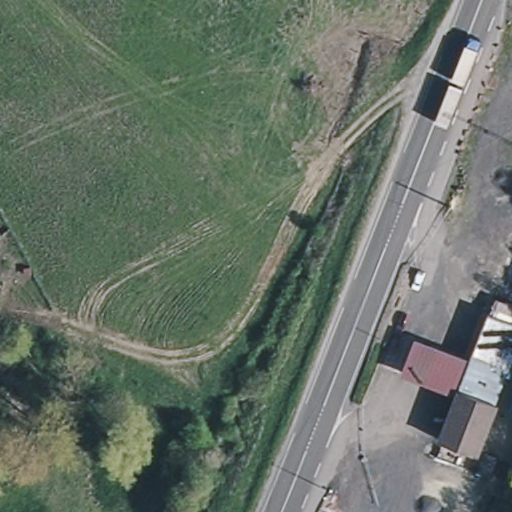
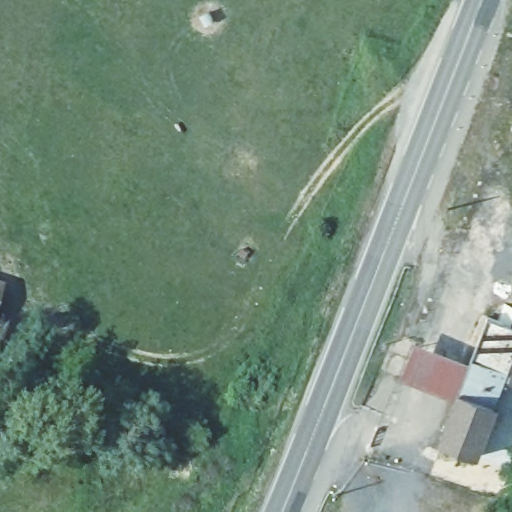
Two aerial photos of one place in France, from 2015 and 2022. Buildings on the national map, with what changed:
unchanged [(492,406),(458,391),(470,362),(487,319),(493,304),(512,312),(512,382),(503,379),(492,406)]
unchanged [(418,341),(470,362),(458,391),(454,401),(402,380),(418,341)]
unchanged [(472,455),(437,441),(454,401),(458,391),(492,406),(472,455)]
unchanged [(482,459),(494,464),(487,482),(475,477),(482,459)]

